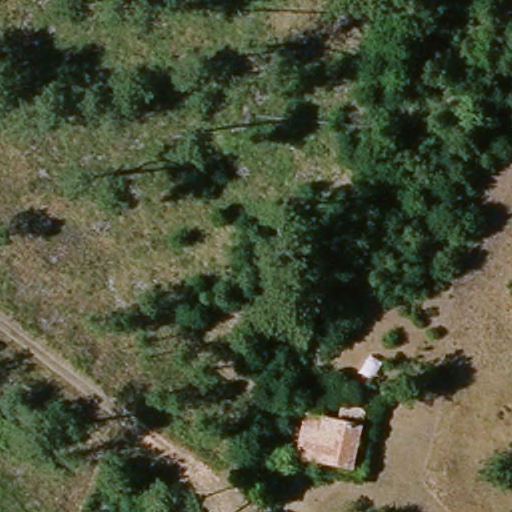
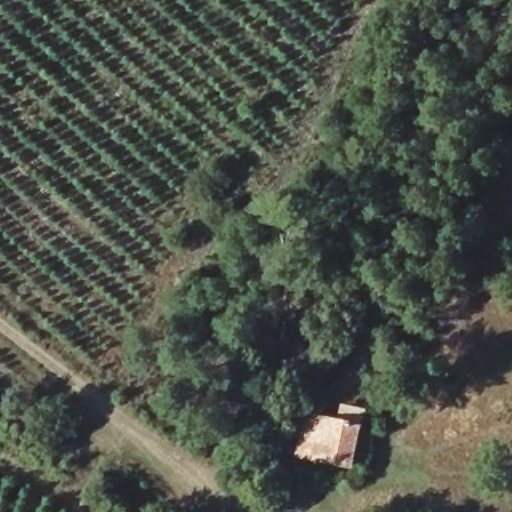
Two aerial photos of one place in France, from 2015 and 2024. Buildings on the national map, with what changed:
unchanged [(366,425),(354,470),(317,459),(302,455),(312,411),(366,425)]

